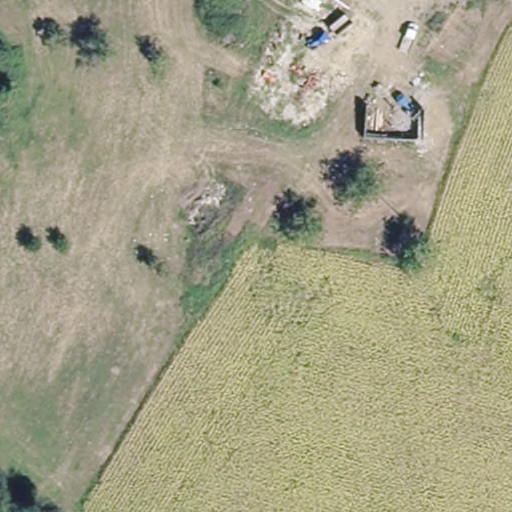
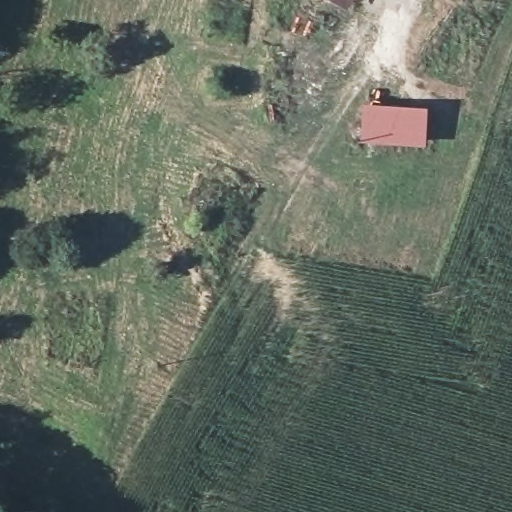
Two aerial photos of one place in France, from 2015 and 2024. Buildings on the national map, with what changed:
demolished [(353,9),(334,0),(358,0),(353,9)]
new [(344,4),(339,0),(346,0),(344,4)]
new [(425,114),(422,146),(363,140),(367,108),(425,114)]

